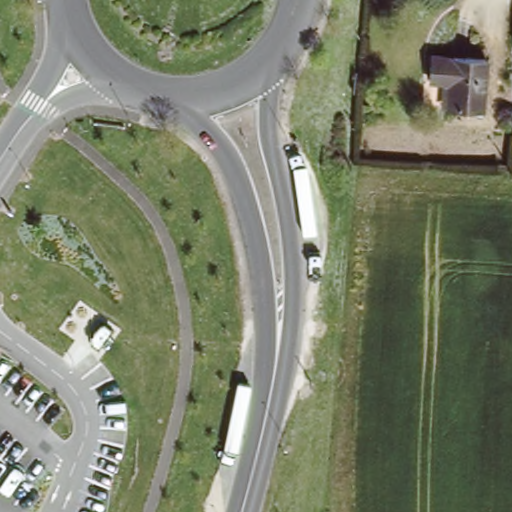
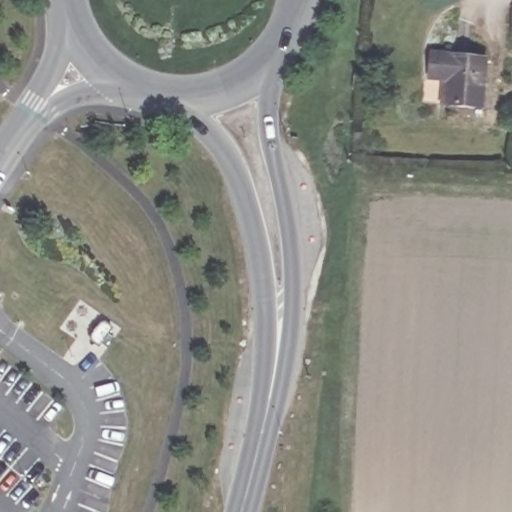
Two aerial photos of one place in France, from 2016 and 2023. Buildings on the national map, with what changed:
unchanged [(452,76),(438,75),(440,50),(465,52),(495,55),(491,104),(462,102),(450,101),(452,76)]

